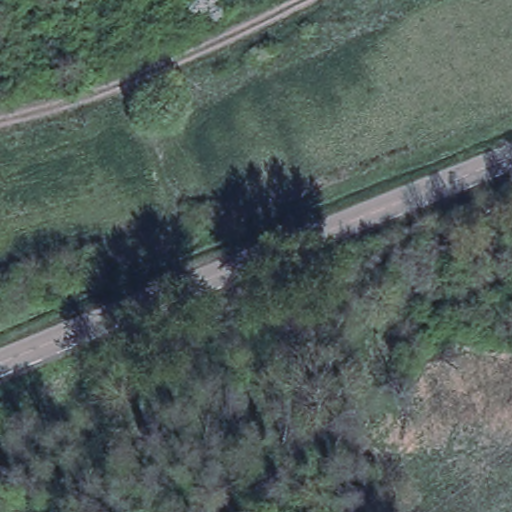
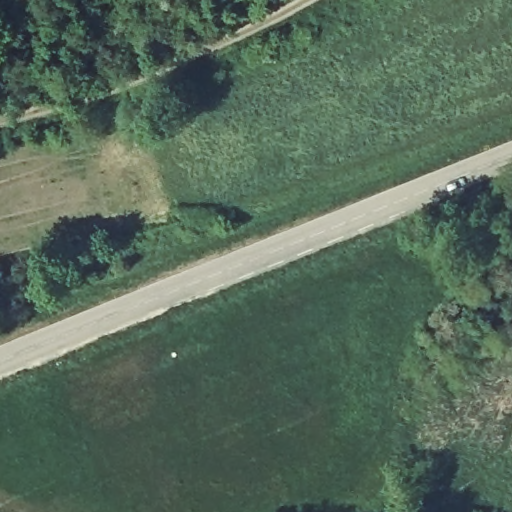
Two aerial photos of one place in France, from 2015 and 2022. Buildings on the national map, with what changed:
unchanged [(394,328),(400,360),(364,363),(359,335),(394,328)]

